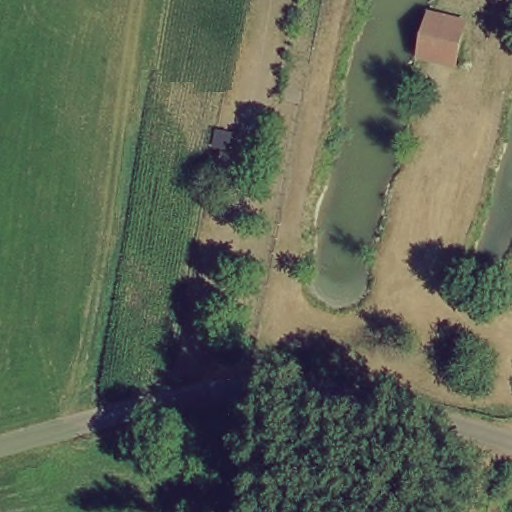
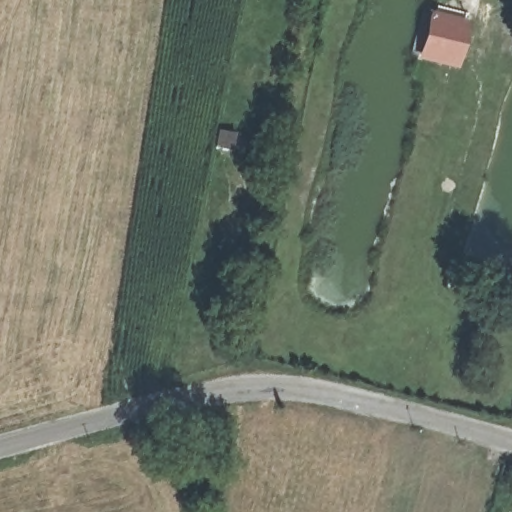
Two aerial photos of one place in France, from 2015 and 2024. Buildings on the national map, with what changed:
unchanged [(461,71),(418,63),(431,9),(469,19),(461,71)]

